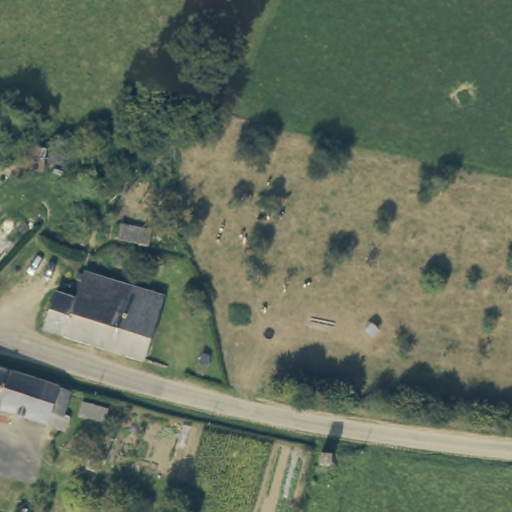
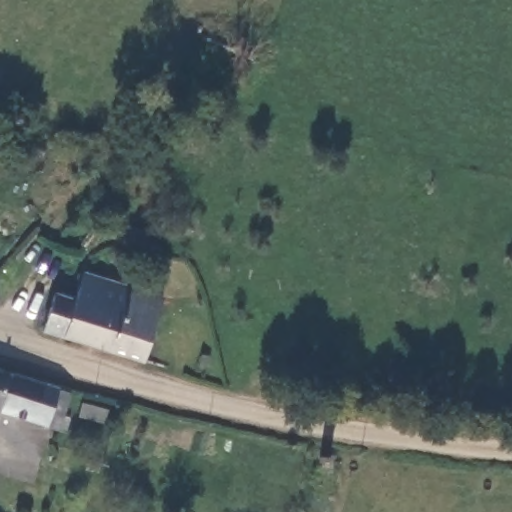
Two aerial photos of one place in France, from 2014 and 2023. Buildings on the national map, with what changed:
unchanged [(46,147),(44,166),(12,160),(16,141),(46,147)]
unchanged [(152,231),(148,246),(117,239),(121,224),(152,231)]
unchanged [(43,330),(55,294),(73,299),(83,272),(164,297),(143,362),(142,364),(43,330)]
unchanged [(70,431),(52,426),(0,410),(0,370),(74,394),(65,415),(74,417),(70,431)]
unchanged [(109,407),(106,419),(78,413),(80,401),(109,407)]

